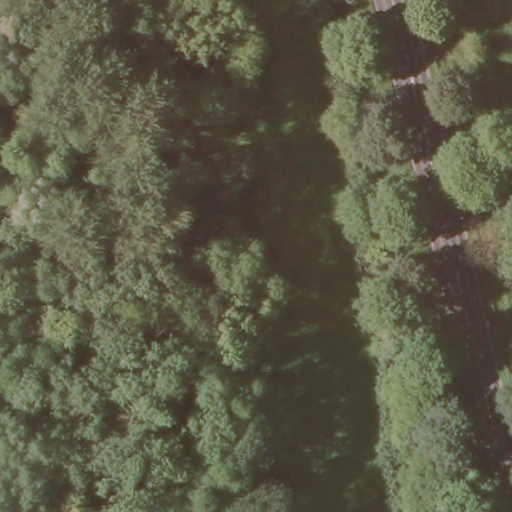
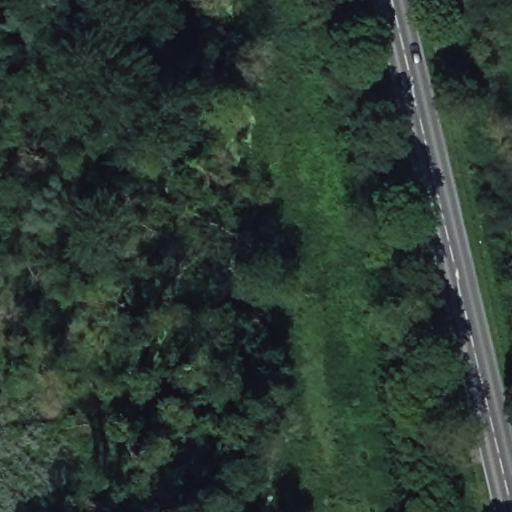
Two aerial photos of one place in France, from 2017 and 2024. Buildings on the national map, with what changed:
[]

